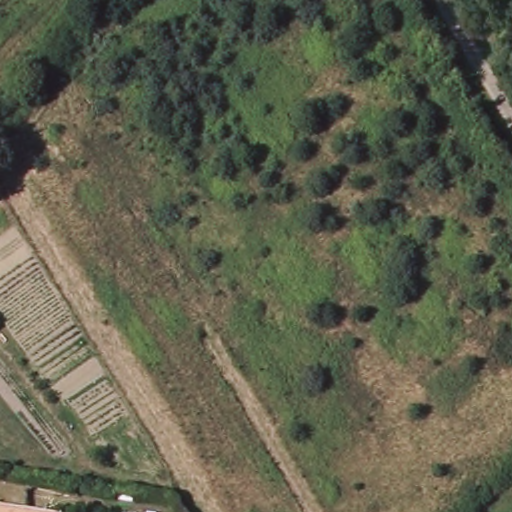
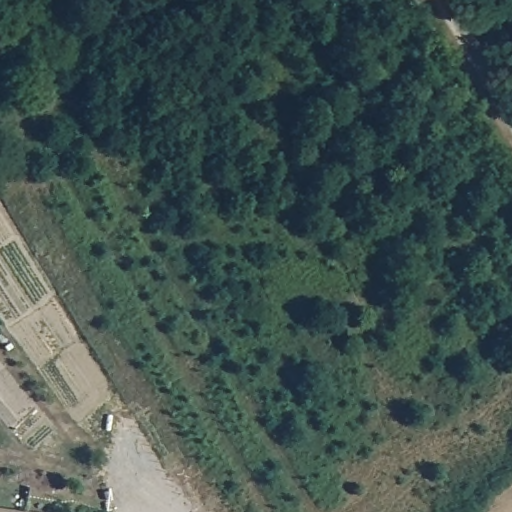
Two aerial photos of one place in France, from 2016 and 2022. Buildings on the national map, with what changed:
unchanged [(40,512),(0,512),(0,509),(40,512)]

